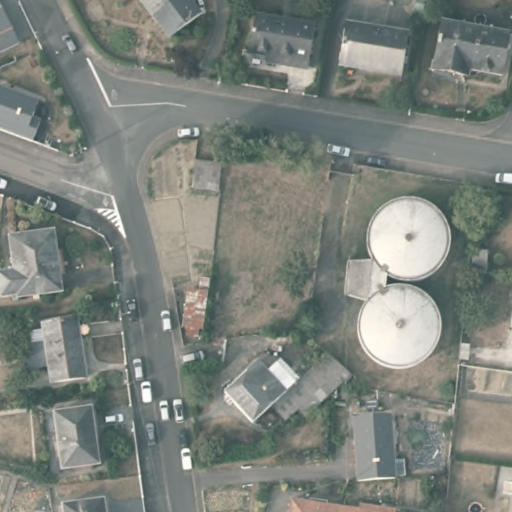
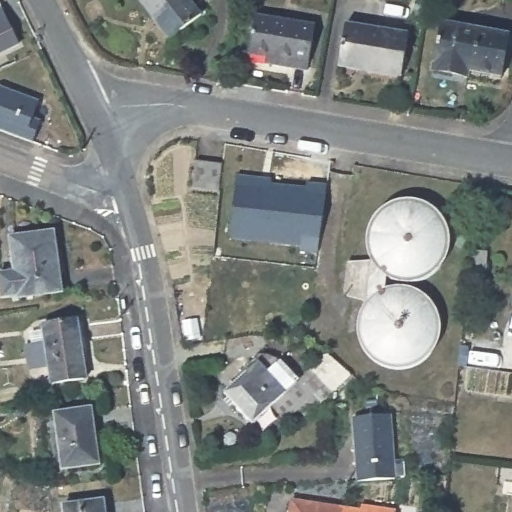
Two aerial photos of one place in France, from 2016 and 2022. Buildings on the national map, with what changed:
unchanged [(199,7),(169,34),(141,0),(193,0),(199,7)]
unchanged [(0,52),(0,2),(20,43),(0,52)]
unchanged [(260,9),(316,19),(310,65),(294,62),(293,56),(254,50),(260,9)]
unchanged [(507,30),(498,71),(454,62),(451,69),(429,65),(438,15),(507,30)]
unchanged [(410,32),(404,74),(342,65),(349,21),(410,32)]
unchanged [(31,120),(40,122),(33,143),(0,131),(0,90),(37,102),(31,120)]
unchanged [(222,188),(194,187),(194,160),(222,161),(222,188)]
demolished [(266,190),(272,167),(325,179),(319,201),(302,197),(288,251),(240,241),(252,186),(266,190)]
new [(270,177),(270,182),(306,186),(306,181),(326,184),(318,251),(301,250),(301,246),(230,239),(236,174),(270,177)]
unchanged [(51,228),(67,287),(26,299),(25,297),(9,301),(2,278),(18,273),(9,240),(51,228)]
demolished [(182,330),(186,310),(189,286),(211,289),(203,333),(182,330)]
unchanged [(88,377),(51,382),(43,322),(79,318),(88,377)]
unchanged [(254,421),(224,390),(266,352),(277,356),(299,378),(274,403),(254,421)]
unchanged [(327,355),(348,378),(334,391),(307,416),(299,407),(288,418),(274,403),(299,378),(312,367),(327,355)]
unchanged [(100,462),(65,467),(57,411),(93,406),(100,462)]
unchanged [(379,480),(362,481),(350,481),(347,416),(371,415),(384,415),(385,441),(386,464),(389,463),(390,480),(379,480)]
unchanged [(292,497),(302,498),(344,503),(342,512),(290,512),(291,511),(292,497)]
unchanged [(105,512),(65,512),(64,504),(104,499),(105,512)]
unchanged [(396,510),(396,512),(342,512),(344,503),(387,508),(396,510)]

